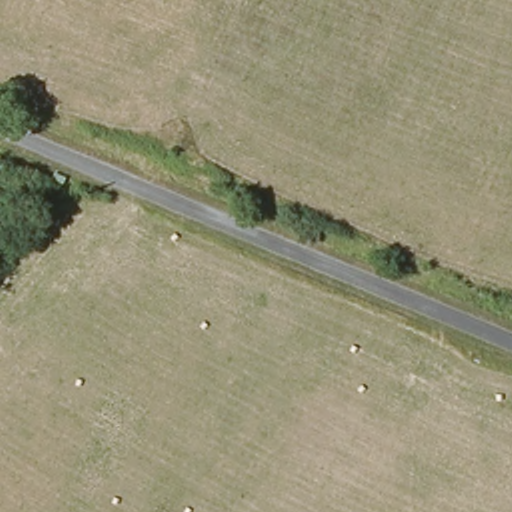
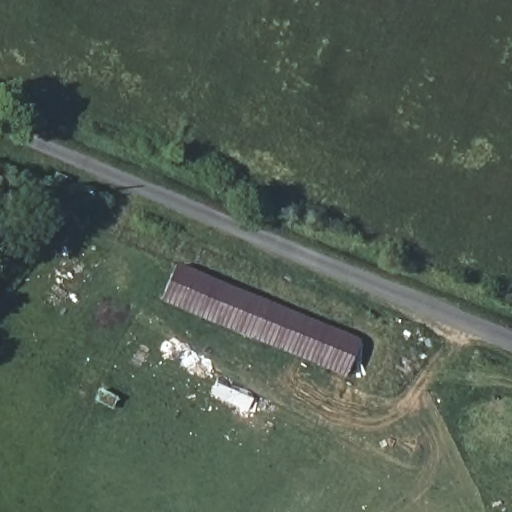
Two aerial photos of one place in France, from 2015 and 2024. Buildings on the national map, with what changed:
demolished [(133,225),(138,205),(151,210),(146,229),(133,225)]
new [(344,375),(162,300),(177,263),(361,339),(344,375)]

